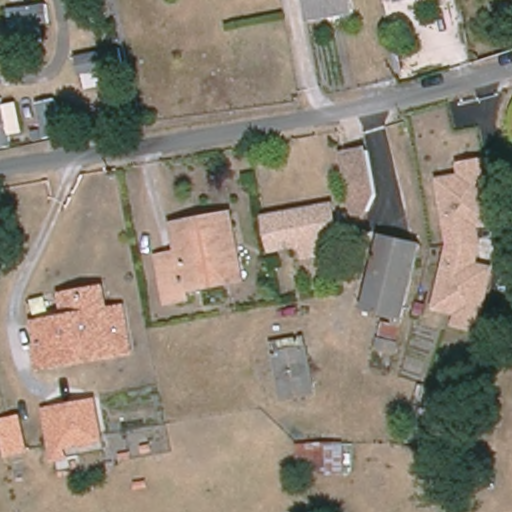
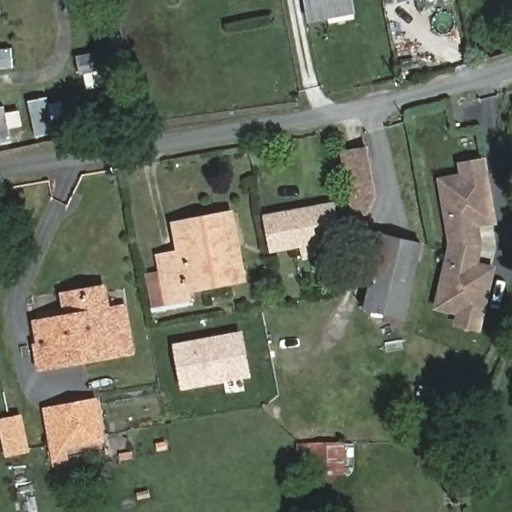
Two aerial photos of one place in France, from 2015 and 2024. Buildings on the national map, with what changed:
unchanged [(310,21),(306,0),(351,0),(354,13),(310,21)]
unchanged [(404,0),(397,2),(396,0),(404,0)]
unchanged [(368,149),(377,193),(368,212),(354,215),(343,155),(368,149)]
unchanged [(441,310),(450,262),(453,247),(451,231),(442,184),(465,179),(463,167),(483,164),(485,176),(494,224),(464,229),(468,247),(464,265),(493,271),(484,318),(481,331),(461,327),(464,314),(441,310)]
unchanged [(339,239),(272,249),(267,217),(335,207),(339,239)]
unchanged [(188,285),(190,292),(168,297),(159,254),(180,250),(177,232),(175,221),(231,210),(233,221),(244,274),(188,285)]
unchanged [(405,318),(366,308),(384,236),(423,246),(405,318)]
unchanged [(45,324),(66,321),(64,297),(74,296),(102,291),(106,313),(123,311),(129,352),(43,366),(40,347),(36,326),(45,324)]
new [(181,391),(172,344),(242,331),(251,377),(181,391)]
demolished [(317,395),(285,402),(276,355),(308,349),(317,395)]
unchanged [(54,446),(49,413),(61,412),(93,406),(99,437),(85,440),(66,443),(55,445),(54,446)]
unchanged [(6,458),(0,427),(0,421),(25,415),(33,452),(6,458)]
unchanged [(345,476),(298,477),(297,444),(344,443),(345,476)]

